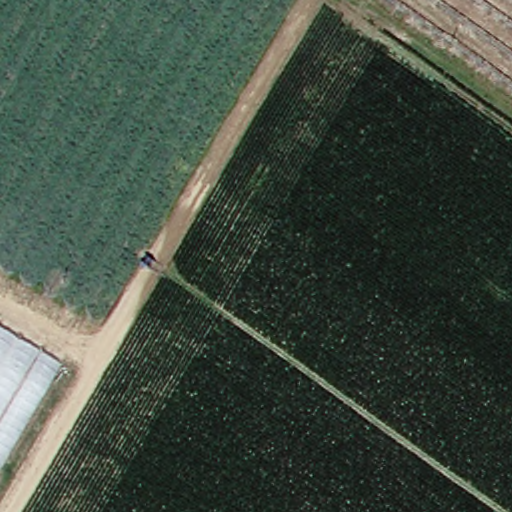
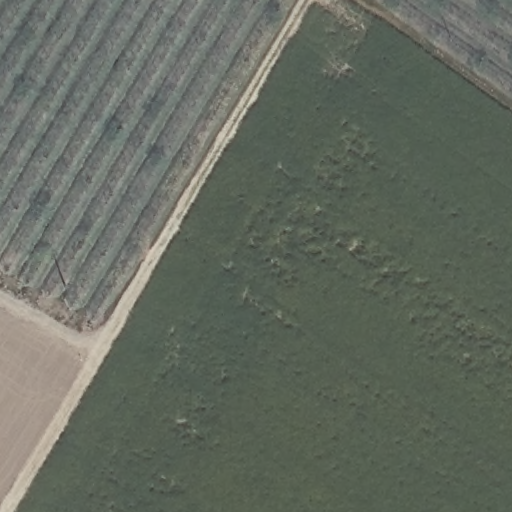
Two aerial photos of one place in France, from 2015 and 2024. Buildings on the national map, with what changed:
demolished [(61,357),(0,459),(0,321),(61,357)]

